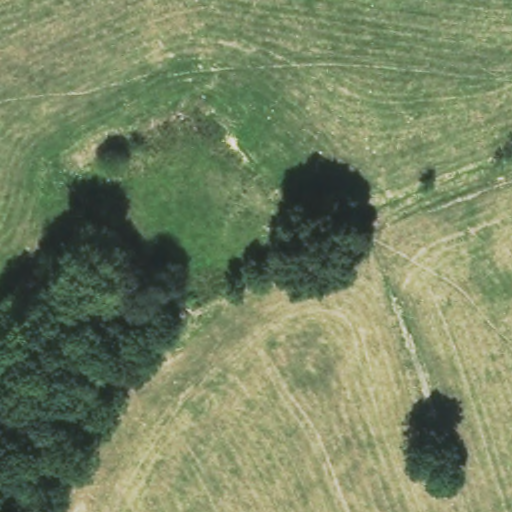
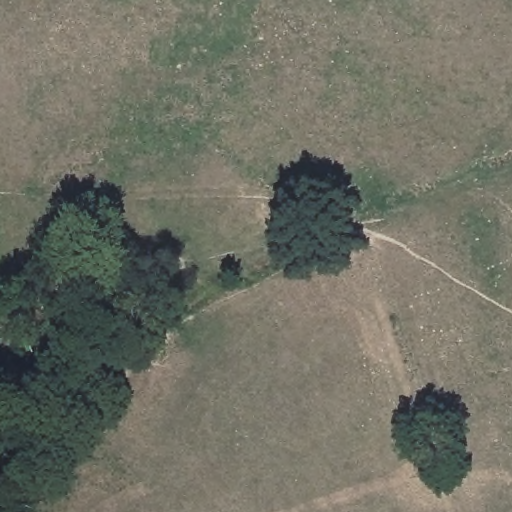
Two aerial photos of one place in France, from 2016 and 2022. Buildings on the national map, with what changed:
unchanged [(158,313),(144,333),(115,313),(131,290),(158,313)]

